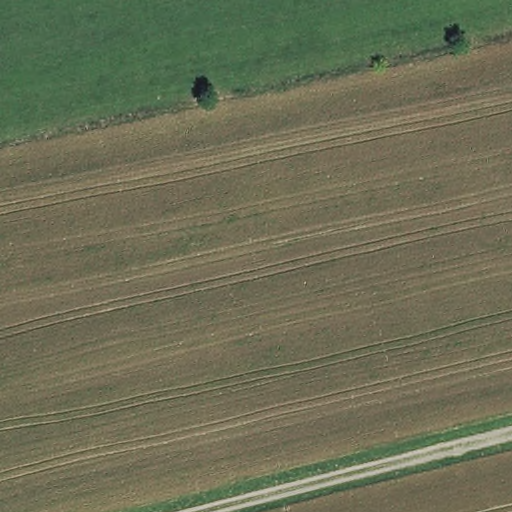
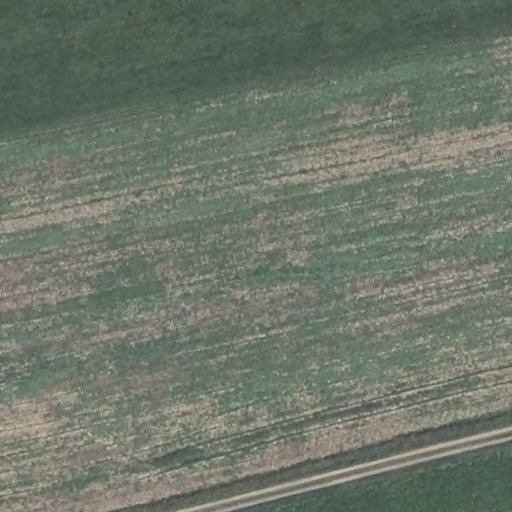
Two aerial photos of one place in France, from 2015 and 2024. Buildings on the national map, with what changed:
[]

